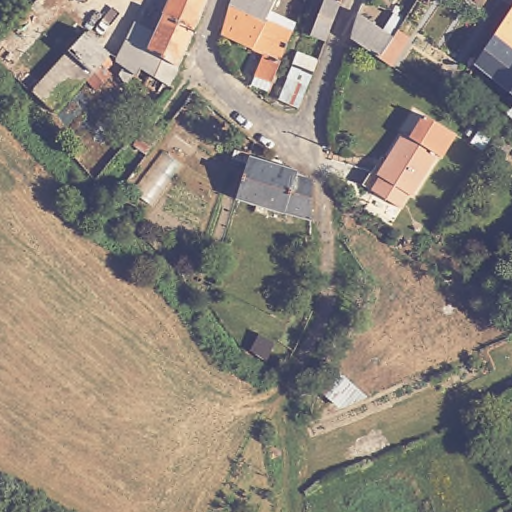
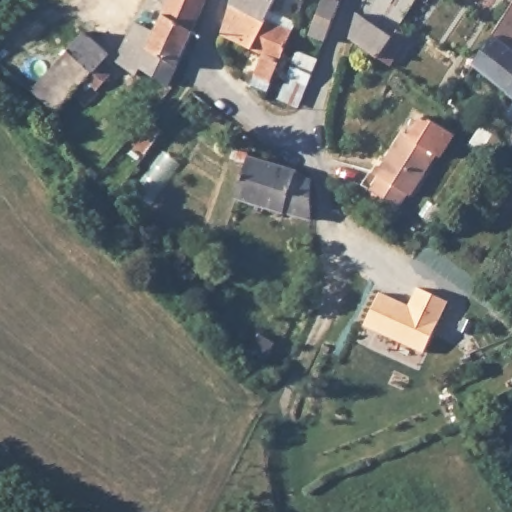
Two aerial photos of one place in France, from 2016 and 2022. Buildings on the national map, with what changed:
unchanged [(169,90),(159,110),(130,93),(125,80),(129,71),(123,67),(140,30),(160,39),(171,12),(161,8),(165,0),(212,0),(190,51),(178,81),(173,91),(169,90)]
unchanged [(233,5),(235,0),(281,0),(271,20),(233,5)]
unchanged [(348,0),(346,4),(332,44),(317,37),(331,0),(348,0)]
unchanged [(259,55),(225,37),(228,24),(233,5),(271,20),(272,21),(259,55)]
unchanged [(473,65),(492,35),(512,7),(512,50),(511,51),(512,51),(512,92),(473,65)]
unchanged [(350,41),(360,15),(391,36),(377,58),(350,41)]
unchanged [(254,89),(266,59),(259,55),(272,21),(299,31),(270,96),(254,89)]
unchanged [(106,72),(105,74),(104,75),(102,77),(108,84),(95,99),(80,86),(52,116),(29,95),(81,37),(105,59),(103,62),(106,65),(106,66),(107,69),(106,70),(106,72)]
unchanged [(292,79),(303,55),(323,63),(312,87),(292,79)]
unchanged [(384,176),(409,131),(404,129),(416,107),(434,119),(460,135),(447,155),(443,152),(418,196),(415,195),(408,209),(371,186),(369,185),(375,175),(377,172),(384,176)]
unchanged [(310,182),(312,224),(286,215),(285,219),(238,203),(251,165),(253,157),(299,171),(299,176),(310,182)]
new [(380,291),(408,303),(416,286),(447,301),(425,352),(363,325),(380,291)]

